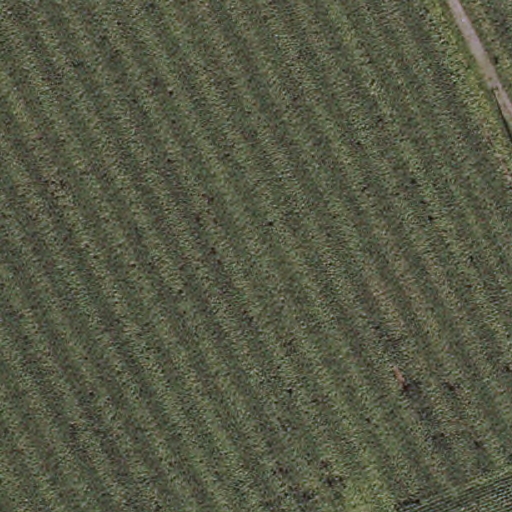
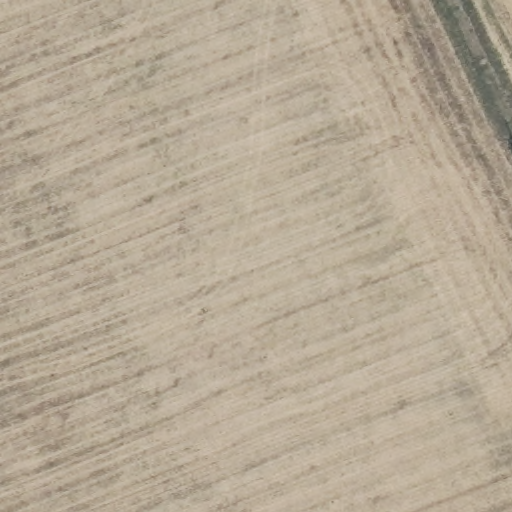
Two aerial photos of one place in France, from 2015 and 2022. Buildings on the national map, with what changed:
[]

